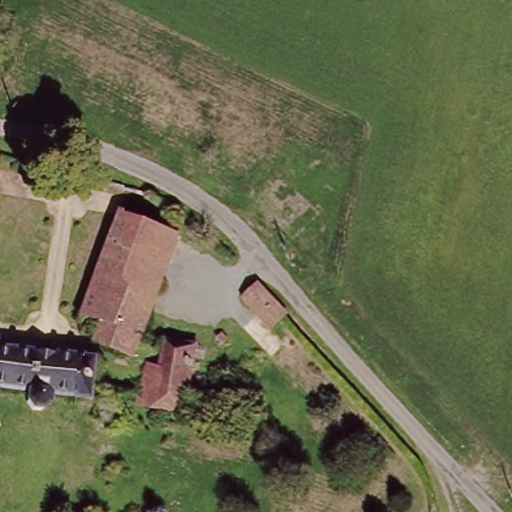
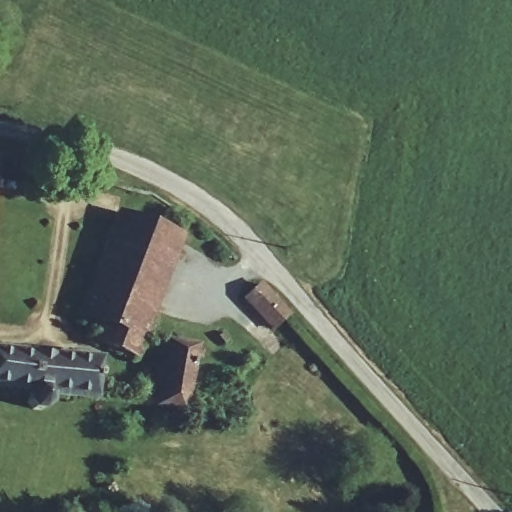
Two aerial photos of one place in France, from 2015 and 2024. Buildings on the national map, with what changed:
unchanged [(6,155),(6,176),(0,176),(0,155),(6,155)]
unchanged [(87,341),(92,327),(98,330),(100,322),(80,315),(115,212),(180,234),(138,358),(87,341)]
unchanged [(267,323),(257,312),(249,318),(240,307),(247,300),(242,292),(260,276),(287,306),(267,323)]
unchanged [(140,399),(144,360),(157,361),(160,334),(192,340),(183,403),(140,399)]
unchanged [(109,372),(107,386),(93,385),(92,393),(45,388),(44,400),(37,408),(22,405),(22,387),(0,384),(0,346),(96,358),(95,371),(109,372)]

